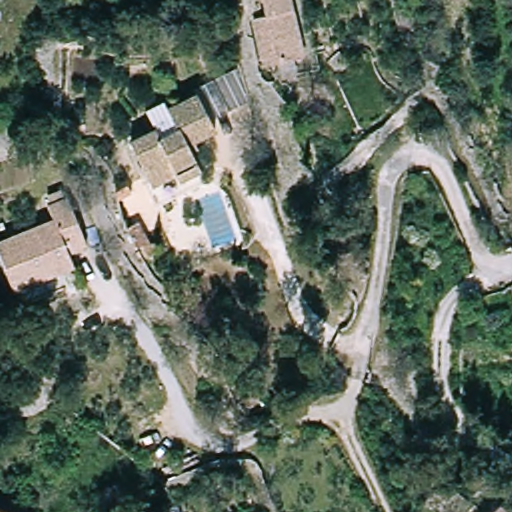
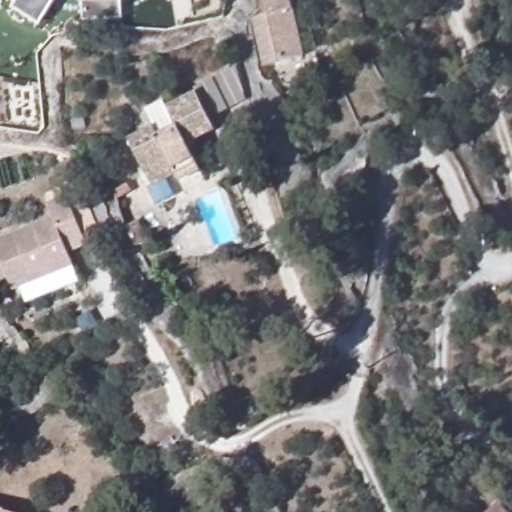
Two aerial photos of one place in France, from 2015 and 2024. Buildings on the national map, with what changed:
new [(14,6),(18,0),(54,0),(40,22),(14,6)]
unchanged [(262,0),(288,0),(291,15),(301,60),(260,70),(249,23),(266,20),(262,0)]
unchanged [(214,130),(187,143),(201,172),(156,193),(130,138),(155,127),(157,133),(174,125),(165,104),(196,90),(214,130)]
unchanged [(15,292),(0,258),(0,241),(53,219),(47,206),(67,198),(87,246),(68,254),(73,267),(15,292)]
unchanged [(499,512),(489,512),(494,507),(499,512)]

